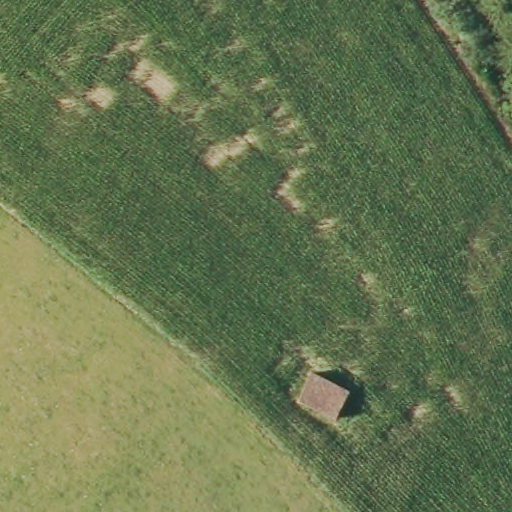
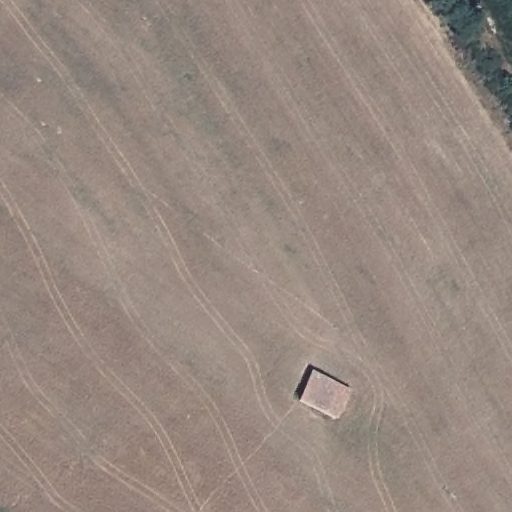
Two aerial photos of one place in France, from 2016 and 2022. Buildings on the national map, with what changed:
unchanged [(339,421),(300,401),(312,372),(352,391),(339,421)]

